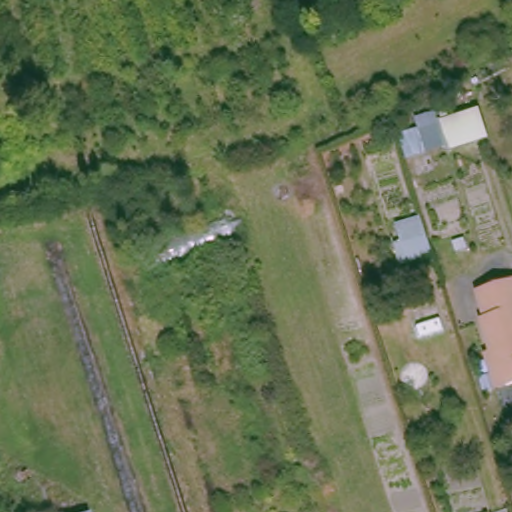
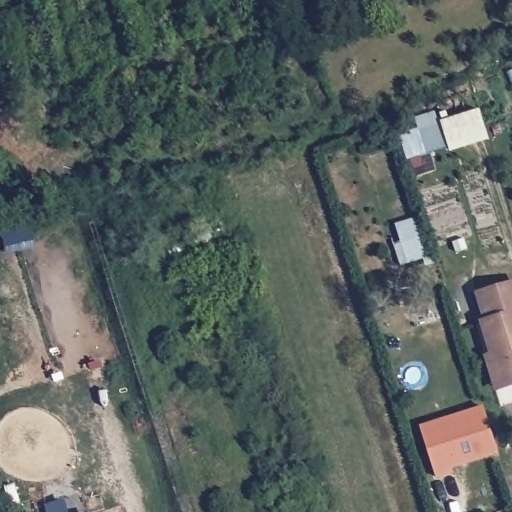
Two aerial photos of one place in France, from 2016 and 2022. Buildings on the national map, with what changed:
unchanged [(440,110),(443,120),(485,107),(495,140),(453,152),(450,149),(432,156),(430,151),(412,155),(405,130),(420,127),(417,116),(440,110)]
unchanged [(234,212),(243,233),(150,274),(140,251),(234,212)]
unchanged [(480,320),(483,318),(475,294),(512,284),(512,386),(502,388),(480,320)]
new [(435,476),(420,427),(483,407),(497,451),(450,466),(451,471),(435,476)]
unchanged [(89,512),(74,512),(88,507),(89,512)]

